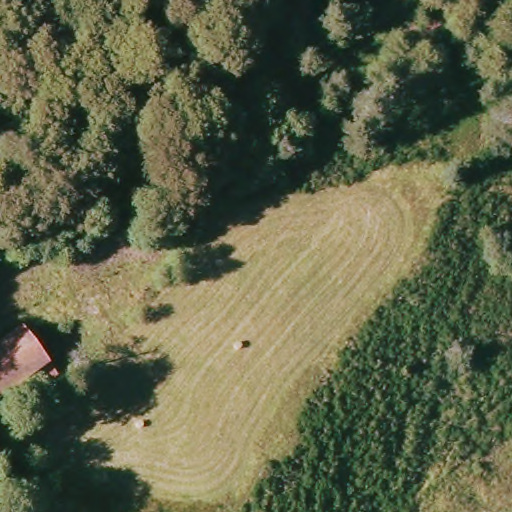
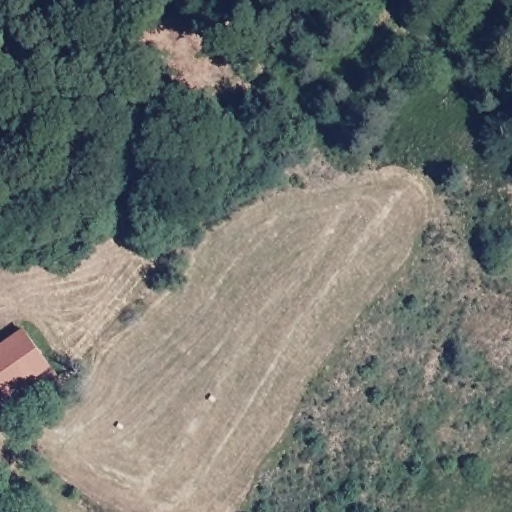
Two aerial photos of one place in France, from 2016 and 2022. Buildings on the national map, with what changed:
unchanged [(0,345),(24,327),(48,358),(0,396),(0,345)]

